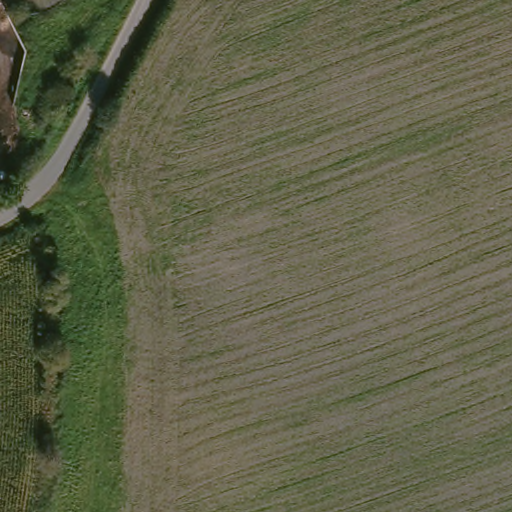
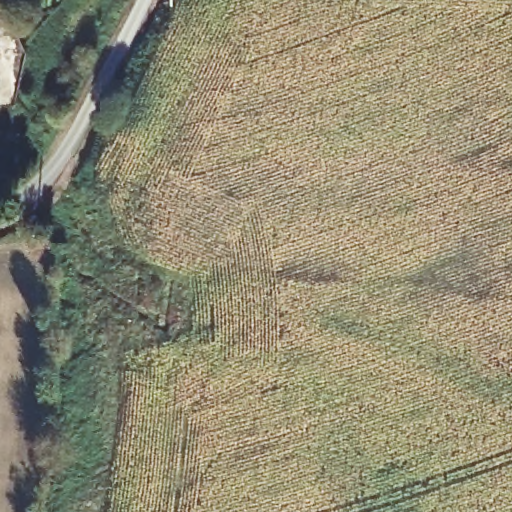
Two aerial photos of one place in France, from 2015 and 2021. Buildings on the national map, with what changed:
unchanged [(0,109),(0,100),(3,107),(0,109)]

